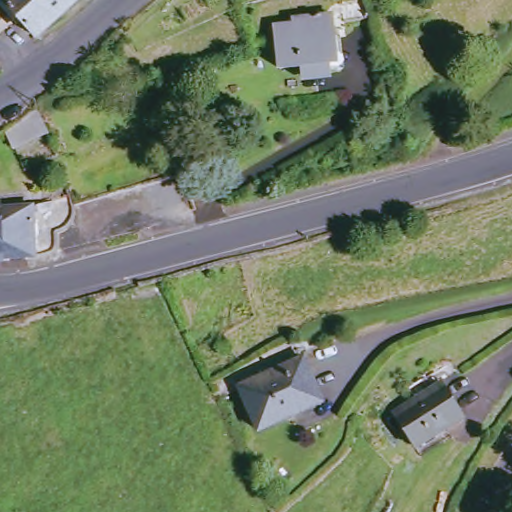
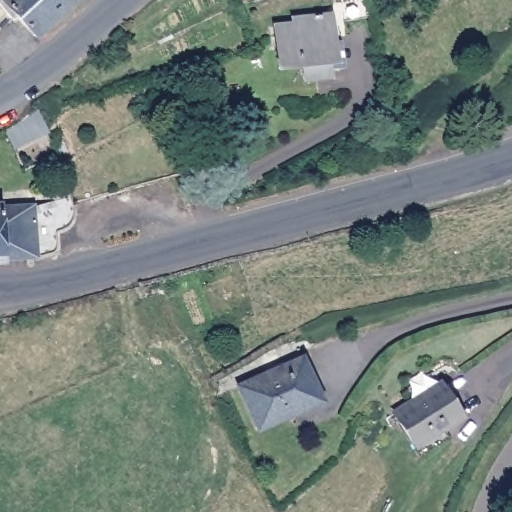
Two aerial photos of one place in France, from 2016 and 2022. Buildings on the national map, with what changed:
unchanged [(34,41),(1,3),(5,0),(80,0),(34,41)]
unchanged [(285,73),(281,30),(297,28),(297,20),(335,18),(339,48),(332,50),(334,69),(285,73)]
unchanged [(15,153),(3,129),(37,112),(50,135),(15,153)]
unchanged [(75,221),(67,230),(58,236),(60,252),(54,260),(0,262),(0,205),(77,205),(75,221)]
unchanged [(327,397),(268,426),(250,384),(306,355),(327,397)]
unchanged [(422,454),(400,421),(420,409),(412,396),(439,379),(468,426),(422,454)]

